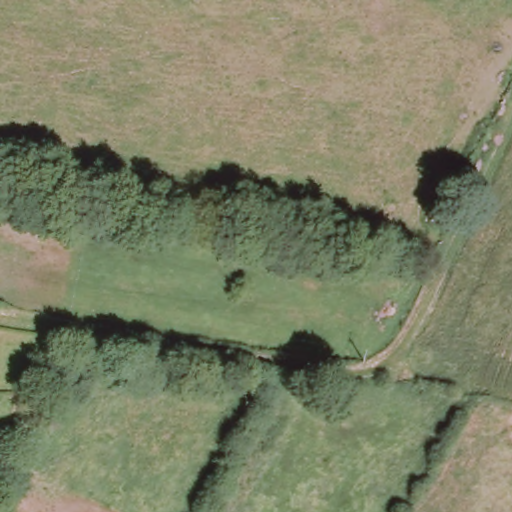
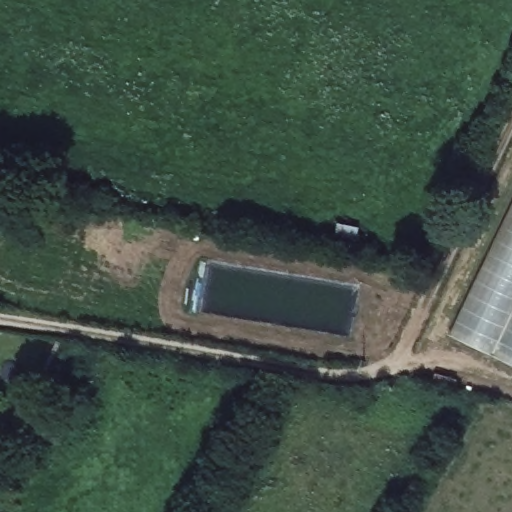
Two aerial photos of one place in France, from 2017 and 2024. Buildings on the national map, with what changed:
new [(512,204),(512,363),(450,333),(512,204)]

